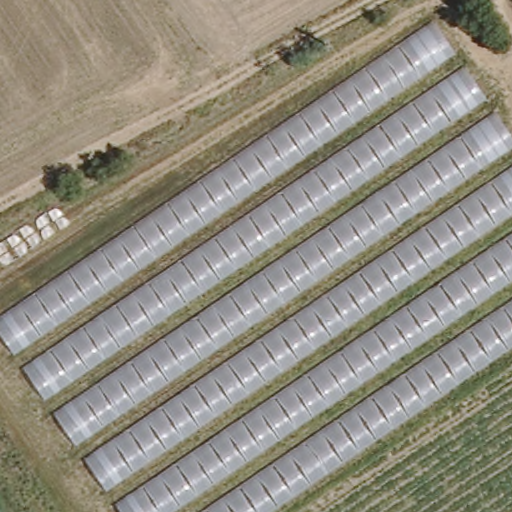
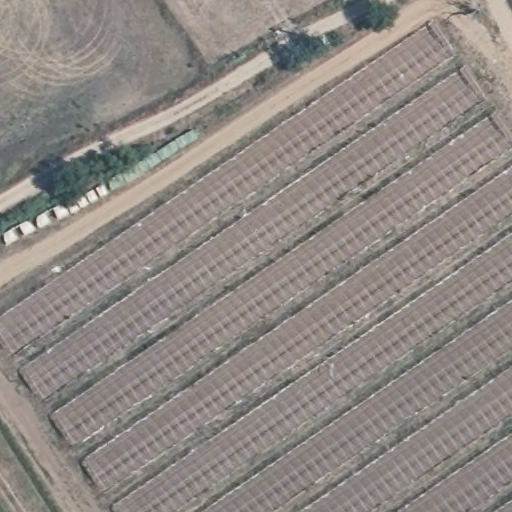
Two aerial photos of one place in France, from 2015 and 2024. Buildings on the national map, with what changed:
unchanged [(0,334),(0,322),(431,27),(512,143),(512,344),(268,512),(121,512),(119,508),(0,334)]
new [(268,512),(512,344),(512,512),(268,512)]

